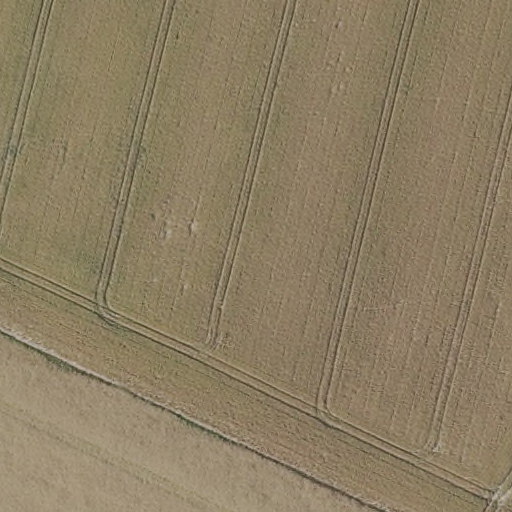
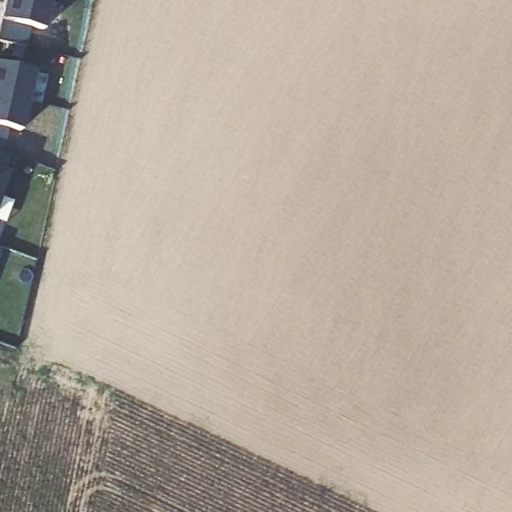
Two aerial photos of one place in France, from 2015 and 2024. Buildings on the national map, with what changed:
new [(0,20),(0,15),(4,0),(49,0),(42,29),(0,20)]
new [(33,70),(26,100),(0,94),(0,63),(33,70)]
new [(26,100),(20,130),(0,126),(0,94),(26,100)]
new [(5,152),(0,165),(0,151),(5,152)]

